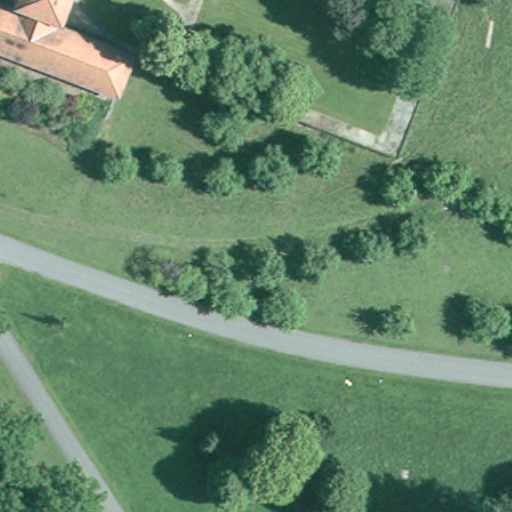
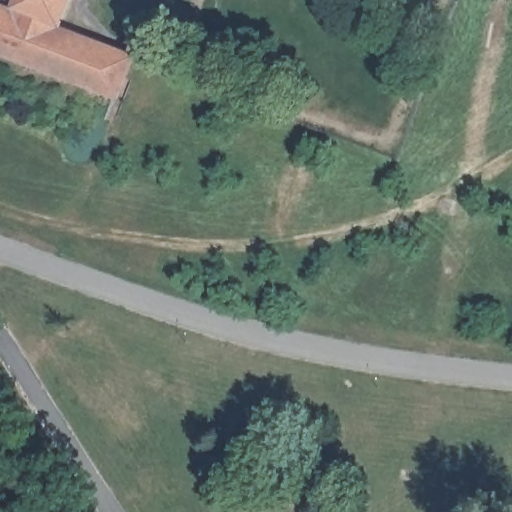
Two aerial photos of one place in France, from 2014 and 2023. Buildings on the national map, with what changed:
unchanged [(140,51),(125,89),(0,40),(0,0),(9,0),(18,4),(19,0),(77,0),(68,22),(140,51)]

